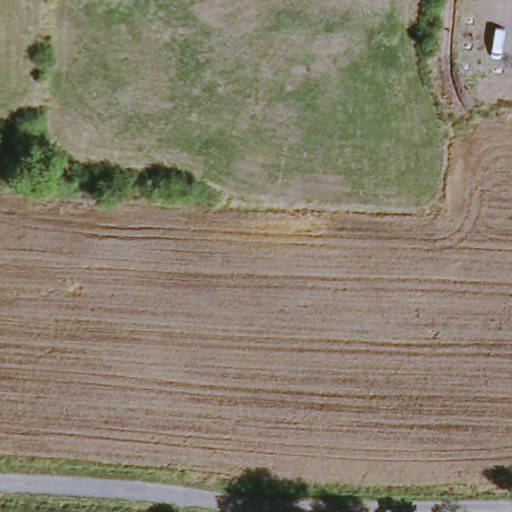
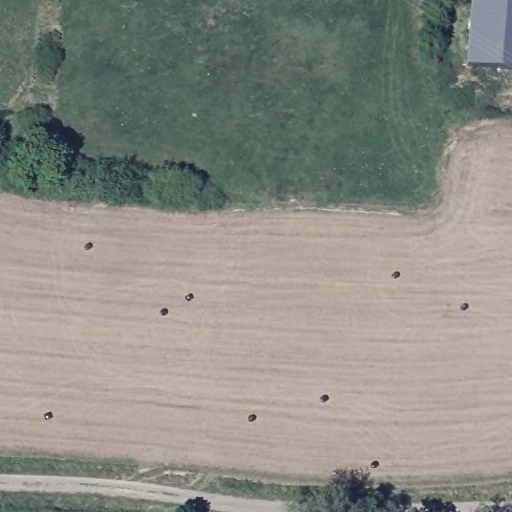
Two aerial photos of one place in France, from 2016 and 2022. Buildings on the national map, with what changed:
new [(471,0),(512,0),(512,72),(463,67),(471,0)]

